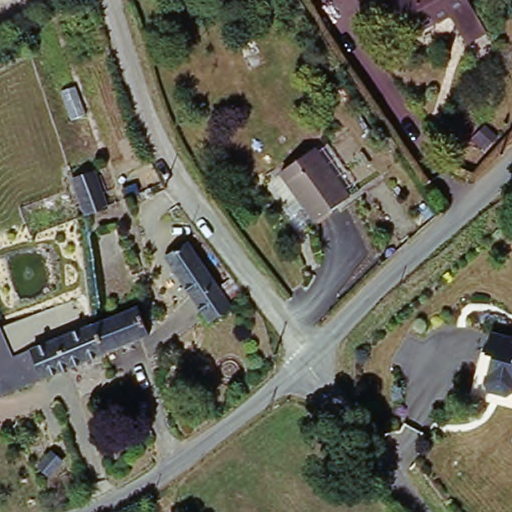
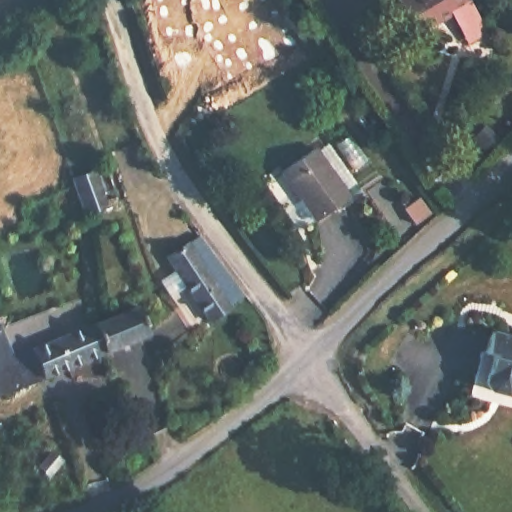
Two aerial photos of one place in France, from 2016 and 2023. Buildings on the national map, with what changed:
unchanged [(485,30),(465,40),(453,19),(452,16),(440,23),(441,25),(417,38),(394,0),(468,0),(485,30)]
unchanged [(321,145),(352,198),(316,221),(286,166),(321,145)]
unchanged [(85,217),(69,182),(97,173),(112,206),(85,217)]
unchanged [(197,242),(233,310),(214,320),(174,252),(197,242)]
unchanged [(1,397),(0,396),(0,326),(5,324),(14,352),(140,303),(154,336),(1,397)]
unchanged [(0,326),(0,325),(1,326),(0,326)]
unchanged [(508,400),(492,396),(487,388),(477,386),(483,357),(487,358),(492,337),(512,342),(512,398),(508,400)]

